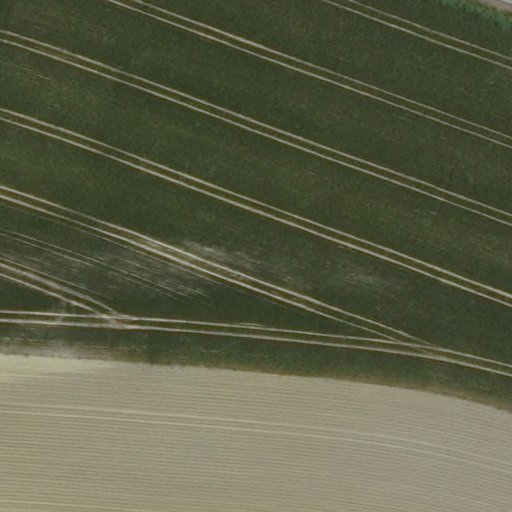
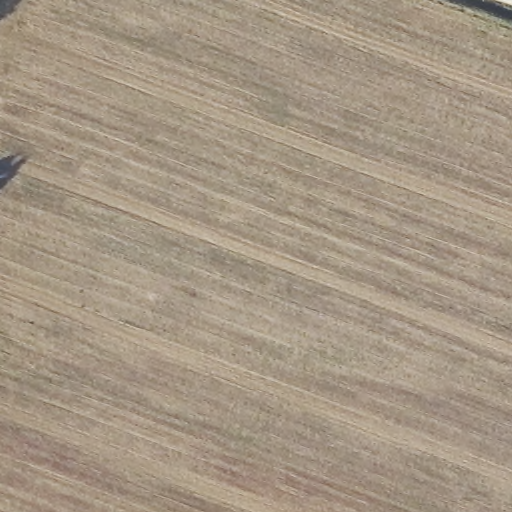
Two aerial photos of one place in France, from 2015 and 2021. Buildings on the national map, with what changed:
[]

